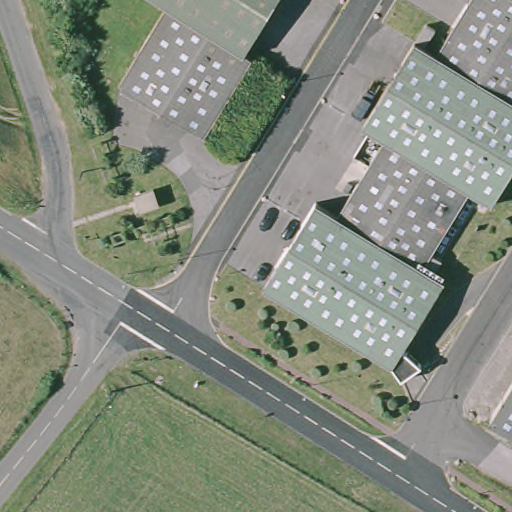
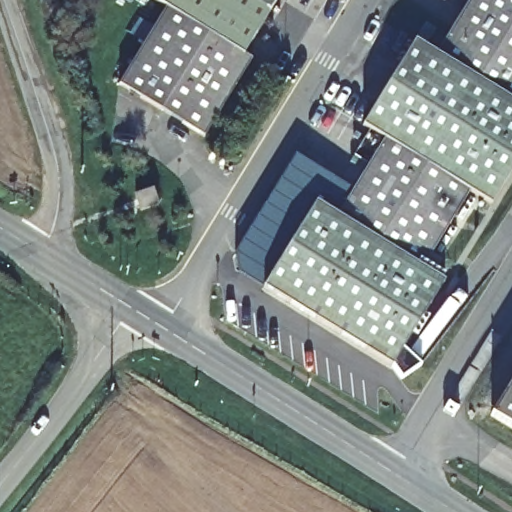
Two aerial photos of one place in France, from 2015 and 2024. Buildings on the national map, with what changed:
unchanged [(249,54),(199,130),(114,79),(162,2),(159,0),(271,0),(240,49),(249,54)]
unchanged [(465,188),(427,249),(438,255),(430,269),(440,275),(397,346),(408,353),(415,363),(397,374),(388,360),(260,282),(311,196),(332,209),(380,133),(359,119),(410,33),(432,48),(460,0),(512,0),(512,159),(487,200),(465,188)]
unchanged [(153,187),(159,203),(140,209),(134,193),(153,187)]
unchanged [(512,367),(512,426),(485,410),(512,367)]

